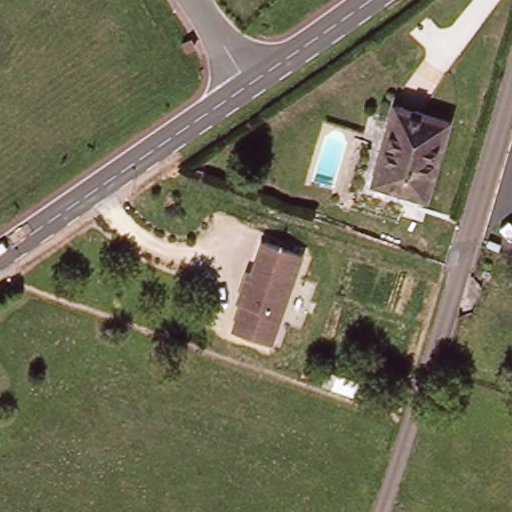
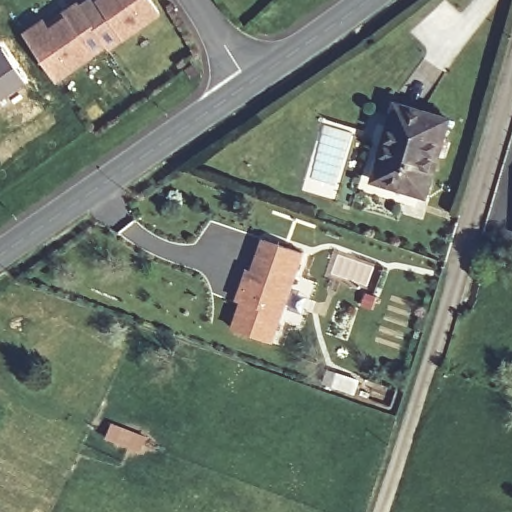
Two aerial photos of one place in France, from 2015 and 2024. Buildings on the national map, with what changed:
new [(62,8),(74,0),(78,0),(78,1),(105,40),(54,75),(23,29),(43,15),(46,19),(62,8)]
new [(107,43),(105,40),(78,1),(81,0),(155,0),(160,7),(107,43)]
new [(24,81),(0,98),(0,46),(1,46),(24,81)]
unchanged [(450,125),(427,200),(373,183),(396,107),(450,125)]
unchanged [(249,289),(250,287),(255,270),(260,272),(270,239),(308,253),(292,301),(279,343),(241,330),(250,302),(245,301),(249,289)]
unchanged [(362,386),(347,382),(351,369),(365,374),(362,386)]

